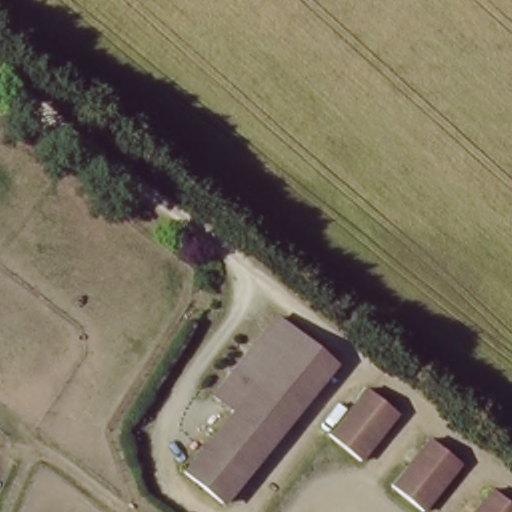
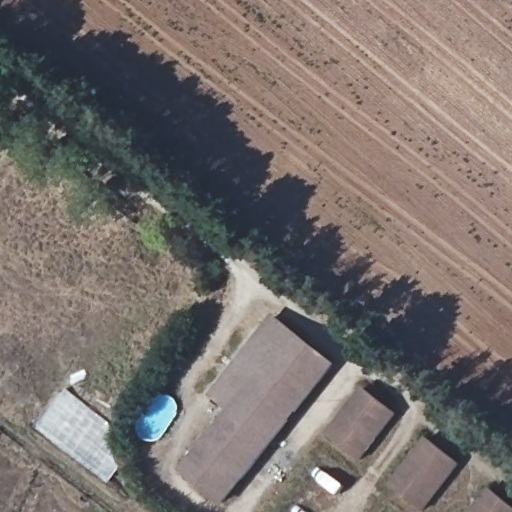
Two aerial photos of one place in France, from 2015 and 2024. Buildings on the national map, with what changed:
unchanged [(335,364),(222,505),(180,473),(230,412),(208,393),(272,315),(335,364)]
new [(67,389),(114,428),(107,438),(125,463),(105,483),(37,428),(67,389)]
unchanged [(367,389),(398,414),(360,462),(328,438),(367,389)]
unchanged [(430,438),(461,463),(422,510),(391,486),(430,438)]
unchanged [(493,489),(512,503),(512,512),(474,512),(493,489)]

